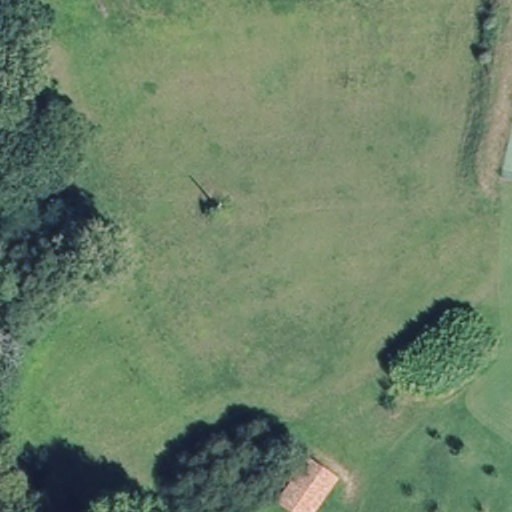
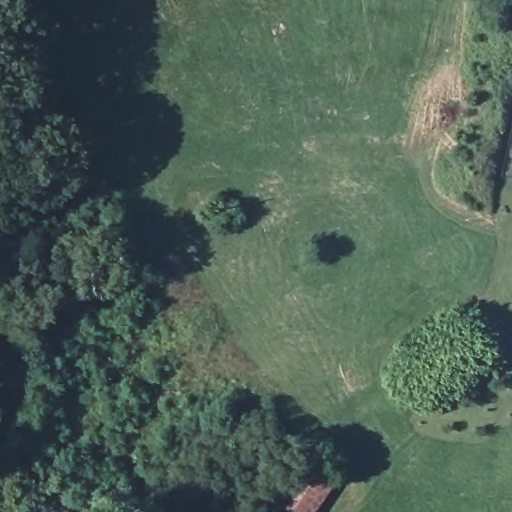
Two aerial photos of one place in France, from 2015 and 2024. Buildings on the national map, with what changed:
unchanged [(308,457),(338,479),(316,512),(290,512),(276,502),(308,457)]

